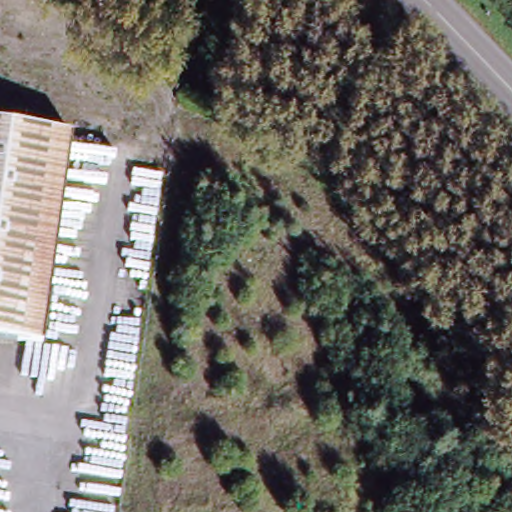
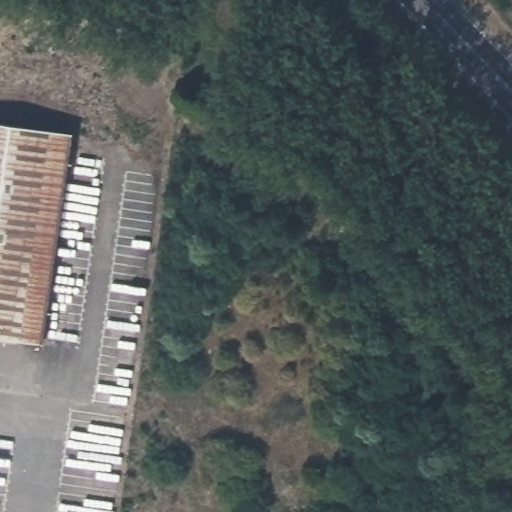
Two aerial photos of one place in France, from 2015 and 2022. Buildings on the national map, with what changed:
unchanged [(0,337),(0,124),(69,134),(41,343),(0,337)]

